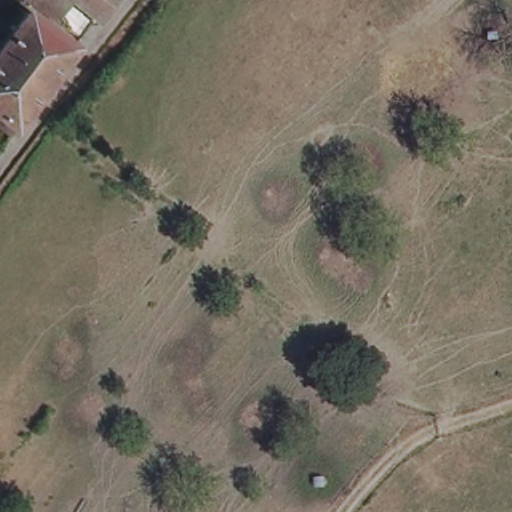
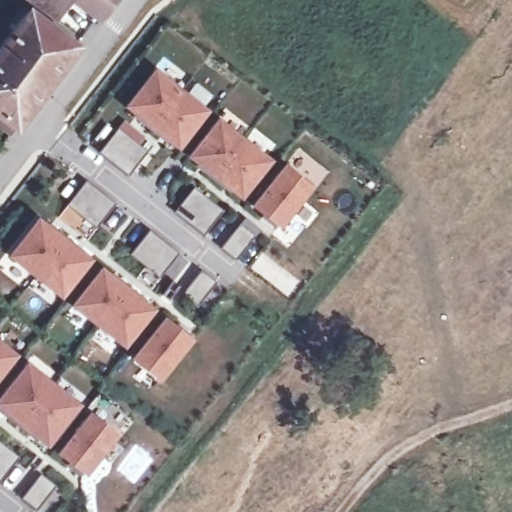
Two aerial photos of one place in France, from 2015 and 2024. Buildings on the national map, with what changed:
unchanged [(55,24),(24,0),(73,0),(55,24)]
unchanged [(102,18),(78,0),(116,0),(102,18)]
unchanged [(0,85),(0,56),(30,14),(77,50),(32,108),(0,85)]
new [(125,107),(155,68),(210,112),(180,151),(125,107)]
unchanged [(10,136),(0,128),(0,85),(32,108),(10,136)]
new [(188,158),(218,118),(273,161),(242,200),(188,158)]
new [(100,151),(118,129),(147,151),(129,175),(100,151)]
new [(283,164),(313,187),(280,230),(251,206),(283,164)]
new [(97,226),(67,204),(87,181),(115,205),(97,226)]
new [(194,188),(222,210),(205,234),(175,212),(194,188)]
new [(8,256),(37,218),(93,260),(62,300),(8,256)]
new [(131,255),(150,231),(178,254),(160,277),(131,255)]
new [(156,310),(125,348),(71,306),(102,267),(156,310)]
new [(193,340),(160,382),(131,359),(164,317),(193,340)]
new [(0,379),(0,341),(18,356),(0,379)]
new [(82,405),(49,447),(0,410),(0,397),(27,363),(82,405)]
new [(89,412),(119,434),(87,478),(57,454),(89,412)]
new [(0,479),(0,442),(18,456),(0,479)]

